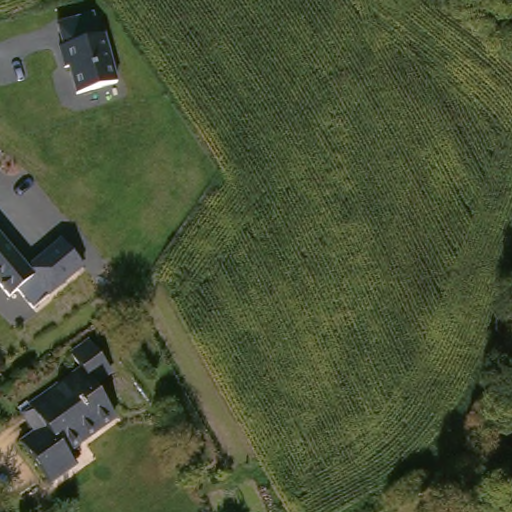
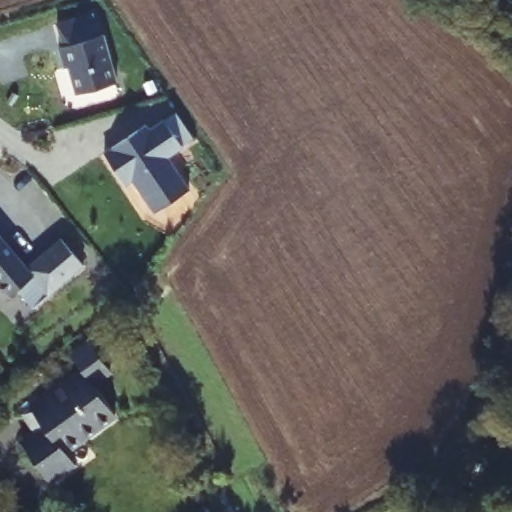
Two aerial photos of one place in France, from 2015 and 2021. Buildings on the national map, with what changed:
unchanged [(107,43),(121,91),(81,103),(73,75),(69,77),(62,56),(67,55),(61,33),(97,23),(102,45),(107,43)]
new [(151,132),(154,137),(169,127),(188,153),(173,163),(195,196),(161,219),(139,187),(131,192),(109,160),(151,132)]
unchanged [(59,244),(81,271),(29,312),(14,292),(6,299),(0,292),(0,241),(24,271),(59,244)]
unchanged [(46,477),(21,434),(40,423),(29,403),(84,366),(74,349),(94,336),(114,369),(95,382),(115,413),(64,445),(71,460),(46,477)]

